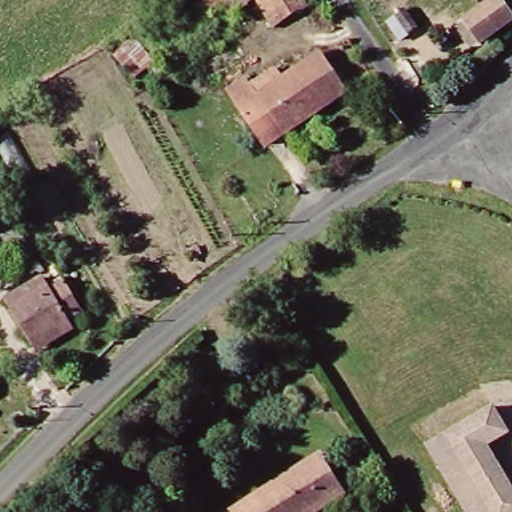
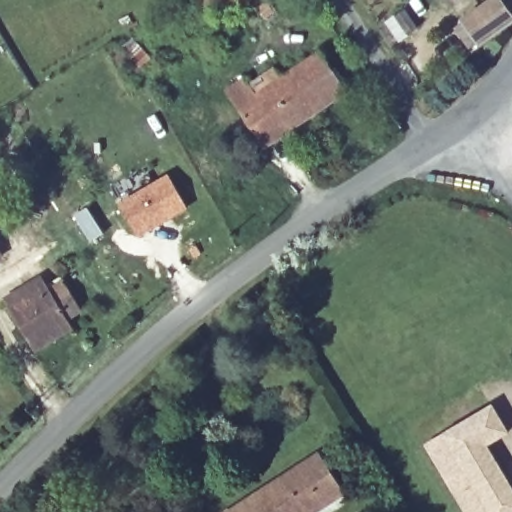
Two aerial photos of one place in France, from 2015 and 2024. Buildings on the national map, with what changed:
unchanged [(195,0),(234,0),(206,18),(195,0)]
unchanged [(269,21),(258,0),(302,0),(303,2),(269,21)]
unchanged [(470,44),(457,25),(493,0),(500,0),(511,15),(470,44)]
unchanged [(214,71),(201,79),(190,61),(230,35),(245,51),(237,57),(249,74),(268,66),(277,76),(314,50),(322,59),(344,49),(363,79),(262,148),(214,71)]
new [(165,179),(183,210),(134,237),(117,205),(165,179)]
unchanged [(26,343),(4,308),(36,285),(40,288),(54,278),(73,308),(63,315),(65,319),(26,343)]
unchanged [(503,438),(482,450),(512,501),(512,512),(484,512),(441,440),(488,412),(503,438)]
unchanged [(316,453),(343,495),(316,512),(225,512),(316,453)]

